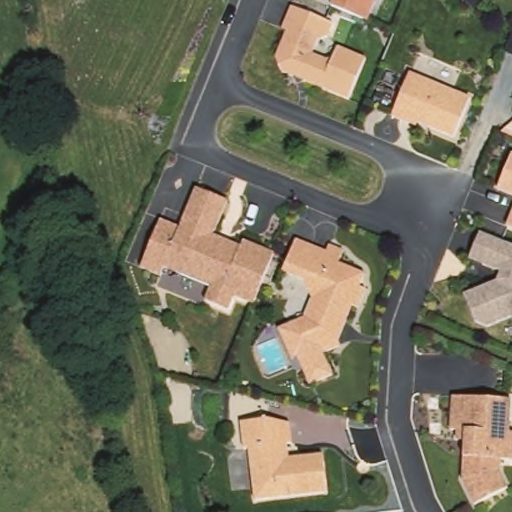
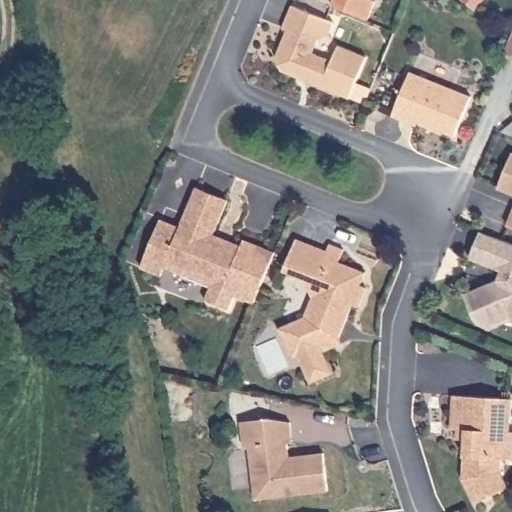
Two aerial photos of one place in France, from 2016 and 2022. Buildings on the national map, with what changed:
unchanged [(328,29),(318,32),(312,47),(327,53),(334,51),(338,40),(366,51),(350,92),(283,65),(277,51),(283,22),(292,0),(293,0),(333,16),(328,29)]
unchanged [(334,0),(373,0),(368,14),(334,0)]
unchanged [(410,116),(393,110),(411,66),(471,91),(455,130),(420,116),(418,119),(410,116)]
unchanged [(500,186),(512,154),(512,191),(500,186)]
unchanged [(229,195),(215,230),(243,241),(245,235),(276,247),(266,271),(256,298),(236,291),(230,305),(207,296),(213,281),(167,262),(164,271),(143,263),(162,215),(182,222),(198,182),(229,195)]
unchanged [(508,224),(512,215),(512,225),(508,224)]
unchanged [(490,325),(477,320),(466,292),(471,257),(482,230),(495,235),(512,242),(512,315),(490,325)]
unchanged [(328,246),(331,239),(345,244),(340,257),(366,267),(361,280),(367,282),(360,302),(353,299),(340,333),(342,340),(323,347),(321,341),(311,346),(298,315),(307,312),(315,292),(306,275),(285,266),(298,234),(328,246)]
unchanged [(457,387),(512,393),(512,427),(512,455),(501,454),(500,467),(506,483),(472,497),(461,472),(466,432),(459,431),(460,422),(453,421),(457,387)]
unchanged [(295,437),(290,438),(292,452),(326,448),(331,486),(259,495),(252,443),(247,443),(244,417),(271,413),(293,417),(295,437)]

